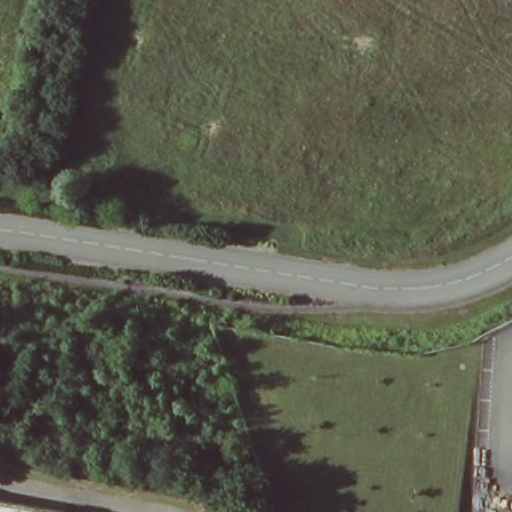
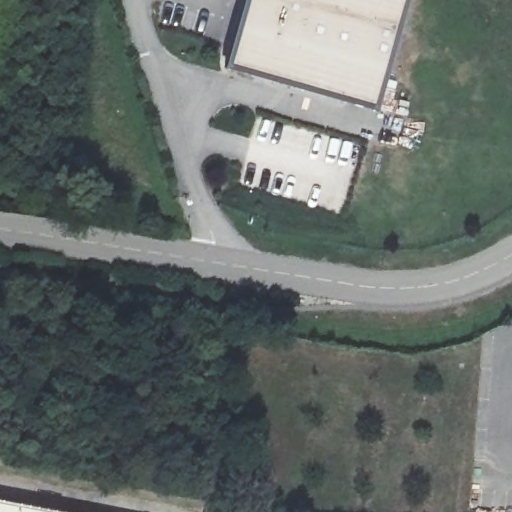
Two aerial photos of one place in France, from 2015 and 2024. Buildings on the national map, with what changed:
new [(376,111),(221,66),(241,0),(406,0),(376,111)]
unchanged [(0,512),(0,500),(65,512),(0,512)]

